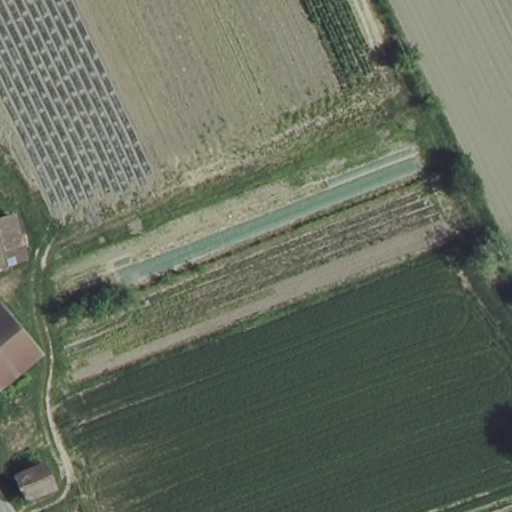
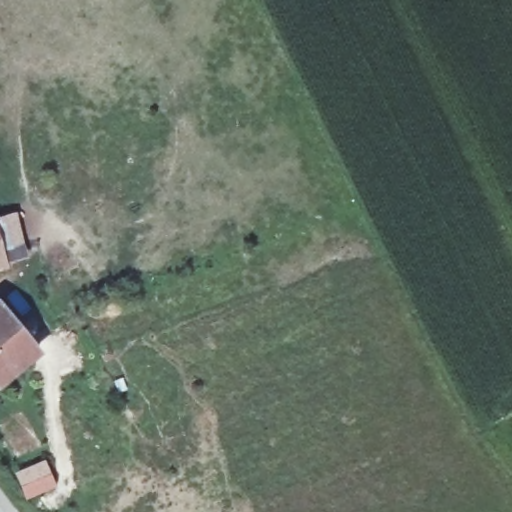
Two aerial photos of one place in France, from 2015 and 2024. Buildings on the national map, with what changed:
unchanged [(8,262),(0,232),(0,217),(18,211),(30,256),(8,262)]
unchanged [(0,265),(0,232),(8,262),(0,265)]
unchanged [(0,387),(0,309),(38,353),(0,387)]
unchanged [(60,488),(22,500),(10,469),(48,458),(60,488)]

